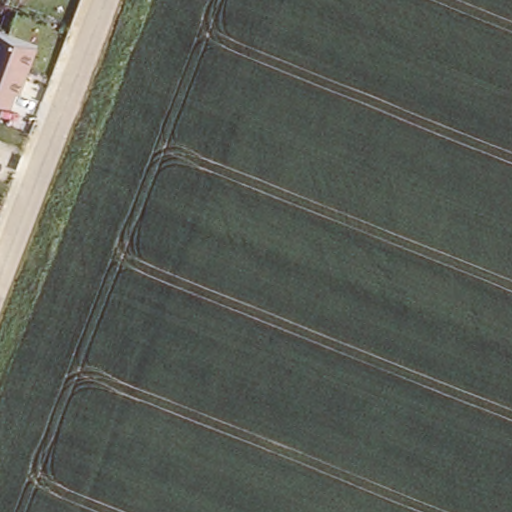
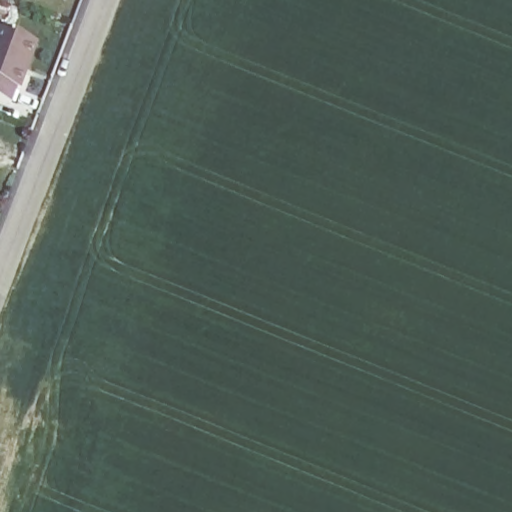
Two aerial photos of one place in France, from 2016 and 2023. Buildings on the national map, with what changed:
unchanged [(21,90),(17,89),(11,104),(0,99),(0,30),(37,43),(21,90)]

